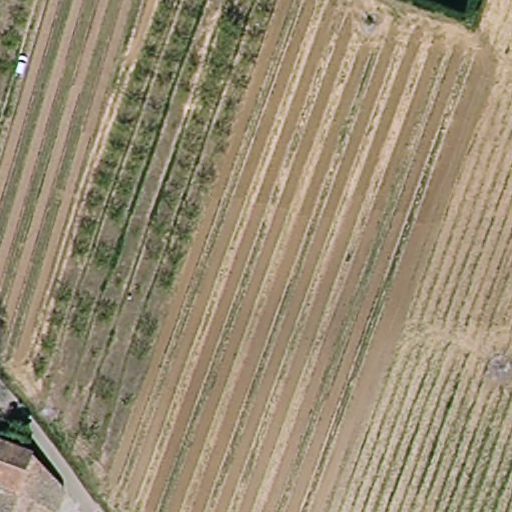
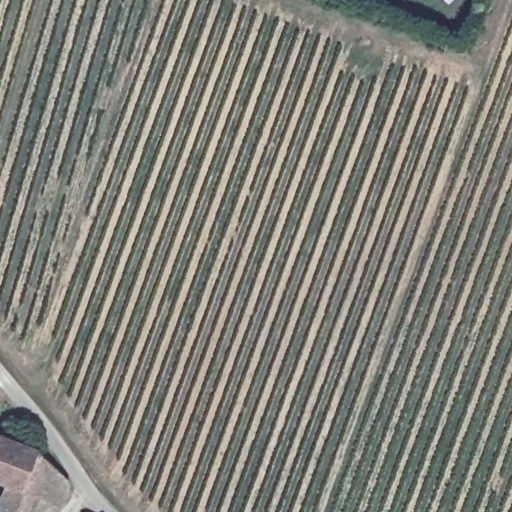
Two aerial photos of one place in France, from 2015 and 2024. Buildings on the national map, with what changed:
unchanged [(43,496),(37,512),(0,512),(11,483),(0,478),(0,435),(47,453),(56,466),(72,477),(75,480),(67,508),(43,496)]

